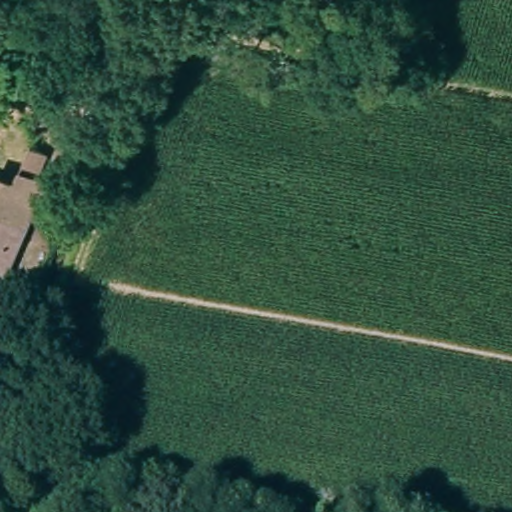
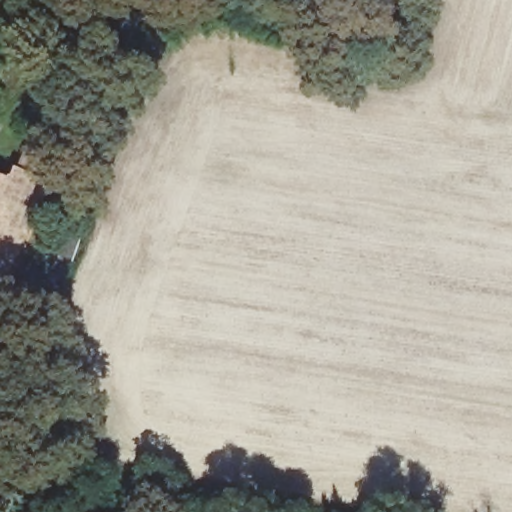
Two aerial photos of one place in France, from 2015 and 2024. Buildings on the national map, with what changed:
unchanged [(125,60),(107,52),(127,11),(145,18),(125,60)]
unchanged [(0,280),(0,179),(16,185),(22,170),(47,179),(37,202),(4,282),(0,280)]

